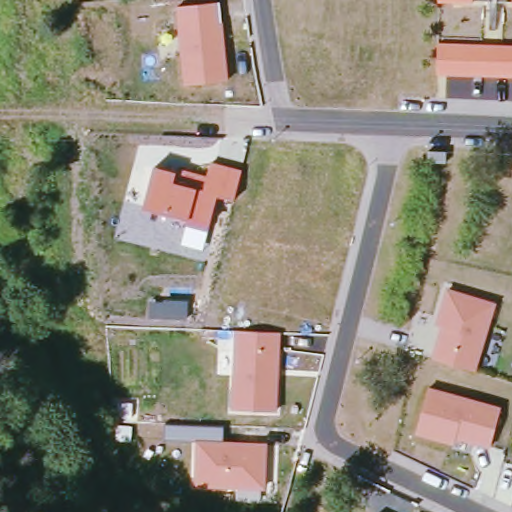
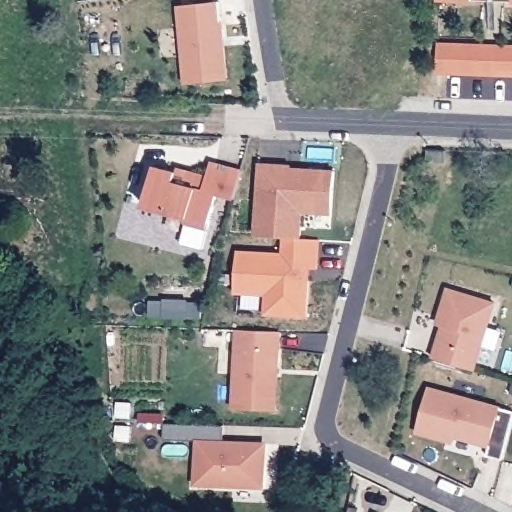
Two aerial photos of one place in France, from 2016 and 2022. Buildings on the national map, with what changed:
unchanged [(439,2),(439,0),(512,0),(512,5),(439,2)]
unchanged [(230,80),(186,85),(178,4),(221,1),(230,80)]
unchanged [(438,77),(439,44),(512,46),(512,79),(438,77)]
unchanged [(238,202),(220,197),(212,230),(143,211),(155,166),(177,172),(178,169),(208,177),(212,162),(243,170),(238,202)]
new [(265,295),(236,295),(237,251),(282,253),(282,236),(255,236),(258,164),(291,164),(292,167),(335,169),(333,214),(305,215),(303,240),(320,241),(318,266),(311,266),(308,317),(266,315),(265,295)]
unchanged [(496,303),(475,371),(432,358),(442,326),(436,325),(447,288),(496,303)]
unchanged [(282,332),(278,412),(232,410),(236,330),(282,332)]
unchanged [(502,407),(491,447),(457,437),(454,446),(416,435),(430,386),(502,407)]
unchanged [(267,490),(195,488),(198,440),(269,444),(267,490)]

